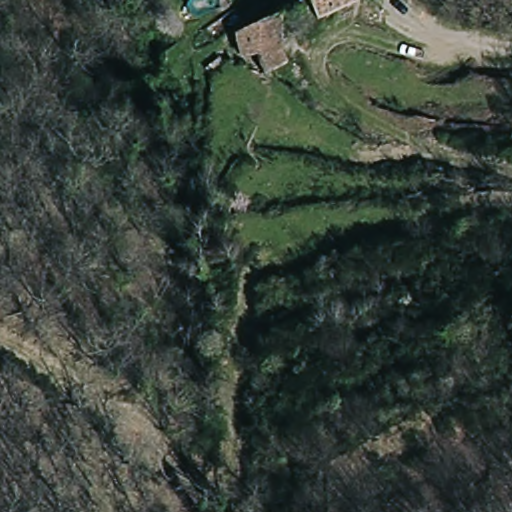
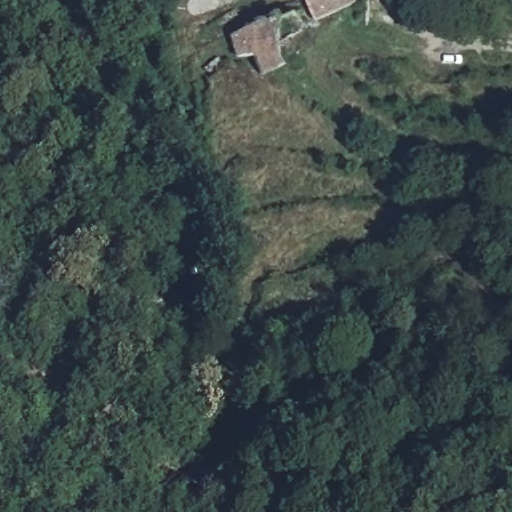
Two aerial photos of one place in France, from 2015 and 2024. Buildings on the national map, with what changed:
unchanged [(350,0),(325,13),(320,15),(314,0),(350,0)]
unchanged [(261,75),(257,63),(255,59),(242,59),(234,34),(277,15),(277,50),(283,67),(261,75)]

